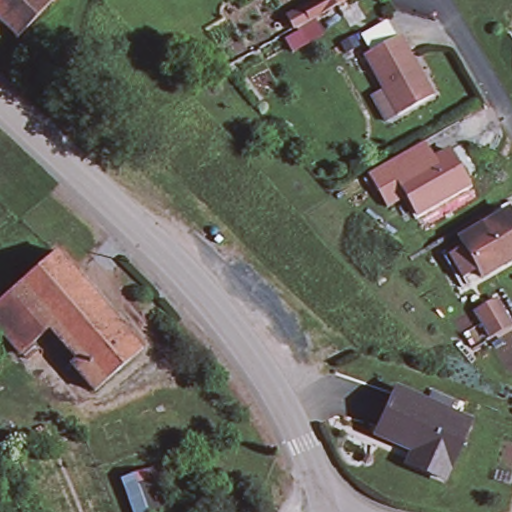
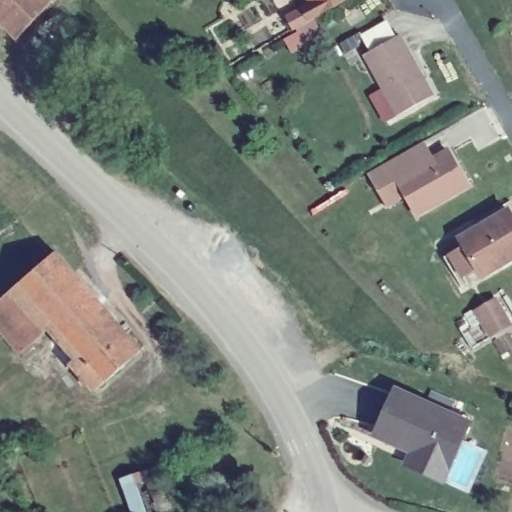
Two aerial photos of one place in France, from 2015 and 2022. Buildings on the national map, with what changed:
unchanged [(52,0),(51,1),(18,37),(0,20),(0,0),(52,0)]
unchanged [(284,17),(310,2),(309,0),(343,0),(291,29),(284,17)]
unchanged [(366,42),(391,29),(400,45),(405,43),(437,102),(400,122),(368,62),(376,58),(366,42)]
unchanged [(372,188),(362,170),(411,142),(418,138),(428,155),(442,147),(462,183),(412,212),(400,192),(381,203),(372,188)]
unchanged [(512,206),(512,256),(488,271),(484,264),(467,275),(454,253),(469,243),(465,235),(512,206)]
unchanged [(22,350),(0,324),(0,297),(58,247),(143,349),(94,389),(70,360),(75,356),(50,326),(22,350)]
unchanged [(494,293),(509,319),(491,331),(474,306),(494,293)]
unchanged [(374,443),(394,396),(424,408),(428,396),(450,405),(448,411),(457,415),(467,419),(459,437),(441,484),(419,475),(406,470),(411,458),(374,443)]
unchanged [(156,465),(173,506),(161,512),(137,512),(123,480),(156,465)]

